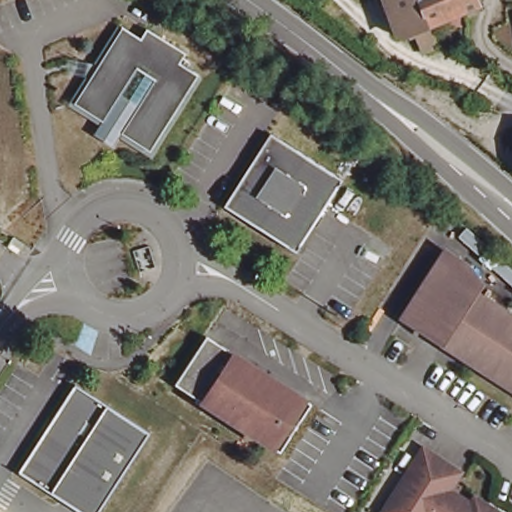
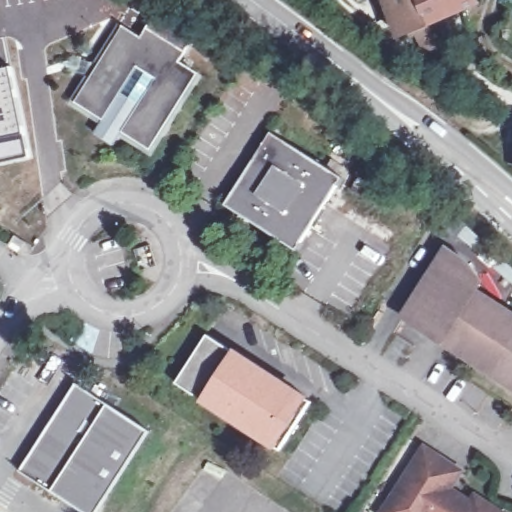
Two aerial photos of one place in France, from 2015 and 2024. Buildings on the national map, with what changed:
unchanged [(328,0),(338,0),(342,6),(328,16),(320,5),(328,0)]
unchanged [(464,16),(461,10),(430,23),(432,29),(427,30),(397,42),(382,0),(476,0),(481,9),(464,16)]
unchanged [(97,134),(105,121),(76,103),(92,76),(87,76),(90,63),(100,64),(125,26),(143,38),(149,28),(188,53),(182,63),(201,74),(153,151),(124,133),(116,145),(97,134)]
new [(31,158),(0,164),(0,67),(12,64),(31,158)]
unchanged [(340,182),(335,189),(331,188),(317,207),(315,204),(302,221),(306,223),(292,242),(295,244),(290,252),(218,200),(238,174),(250,158),(269,130),(340,182)]
unchanged [(401,308),(448,244),(467,258),(472,261),(481,277),(475,286),(512,313),(512,388),(460,351),(438,335),(401,308)]
unchanged [(147,245),(152,267),(135,270),(130,249),(147,245)]
unchanged [(205,334),(310,402),(279,449),(174,383),(205,334)]
unchanged [(145,430),(94,509),(92,512),(81,512),(14,469),(20,461),(70,383),(145,430)]
unchanged [(485,503),(500,512),(381,512),(423,448),(460,471),(448,489),(470,502),(475,496),(485,503)]

